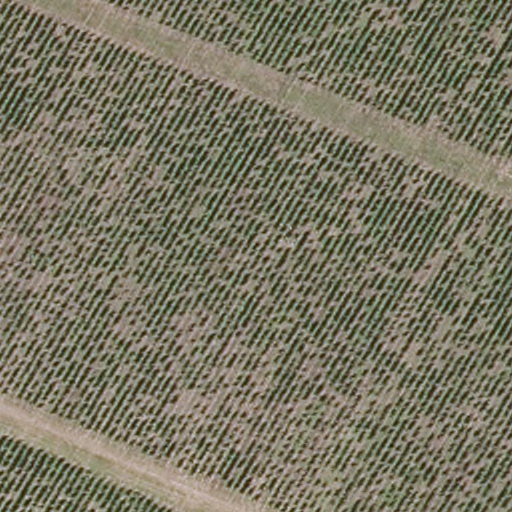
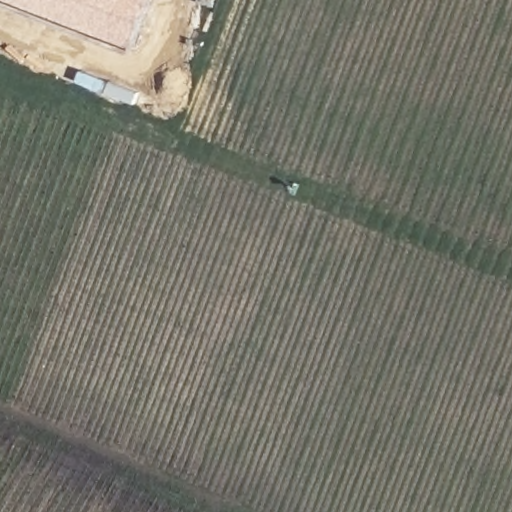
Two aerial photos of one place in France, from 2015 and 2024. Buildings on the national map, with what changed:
new [(0,0),(156,0),(136,52),(0,0)]

